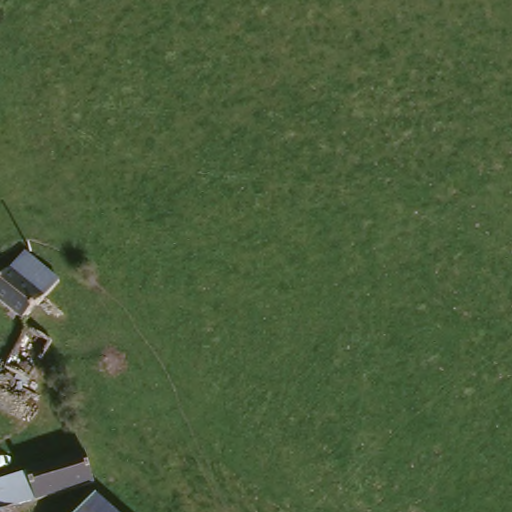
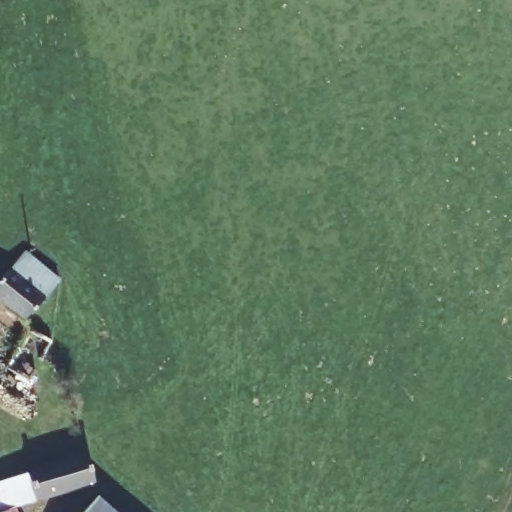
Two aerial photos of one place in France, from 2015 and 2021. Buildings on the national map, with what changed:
unchanged [(48,302),(59,312),(44,336),(0,304),(0,283),(24,248),(63,278),(48,302)]
unchanged [(80,454),(89,482),(52,495),(56,512),(33,512),(31,502),(26,502),(19,474),(23,472),(80,454)]
unchanged [(8,505),(12,512),(0,512),(0,480),(19,474),(26,502),(8,505)]
unchanged [(114,512),(85,512),(98,497),(114,512)]

